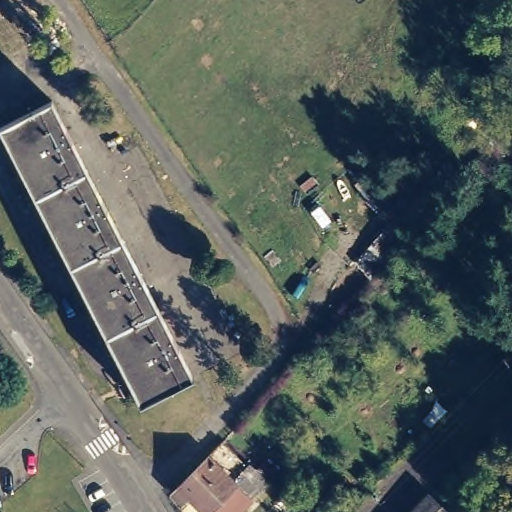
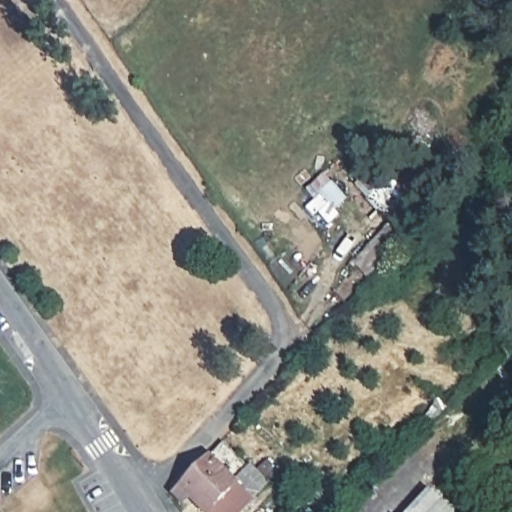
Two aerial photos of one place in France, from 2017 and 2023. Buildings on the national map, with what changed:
demolished [(43,101),(192,371),(138,397),(0,148),(0,122),(43,101)]
unchanged [(418,169),(399,192),(417,211),(386,256),(366,240),(387,216),(368,197),(402,155),(418,169)]
unchanged [(206,452),(229,473),(243,459),(252,466),(260,458),(272,470),(231,512),(201,512),(183,496),(179,500),(170,492),(206,452)]
unchanged [(425,485),(452,508),(448,512),(400,512),(411,500),(425,485)]
unchanged [(263,500),(276,512),(251,512),(263,500)]

